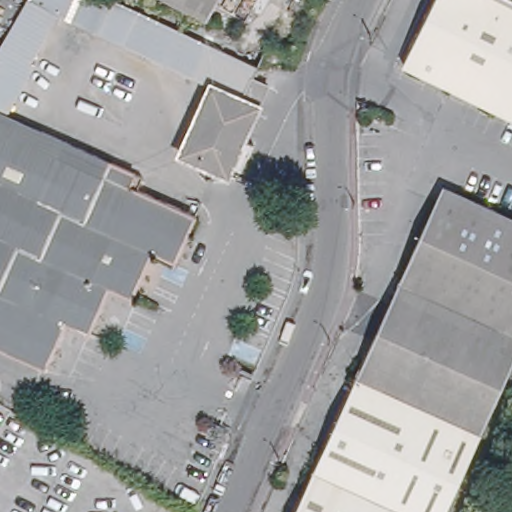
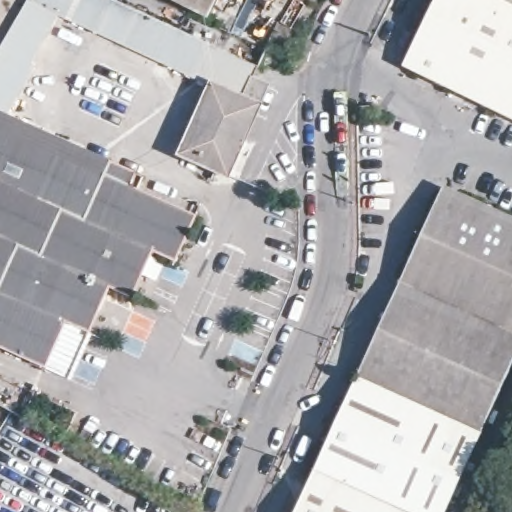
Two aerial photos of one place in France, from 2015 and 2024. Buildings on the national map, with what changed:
unchanged [(114,0),(257,67),(253,76),(269,83),(258,107),(209,86),(59,16),(34,63),(41,68),(17,119),(0,112),(0,45),(26,0),(114,0)]
unchanged [(166,0),(223,0),(211,23),(166,0)]
unchanged [(436,0),(512,0),(512,118),(404,66),(436,0)]
unchanged [(248,156),(238,151),(227,175),(179,154),(209,86),(258,107),(244,137),(255,142),(248,156)]
unchanged [(17,119),(135,172),(130,185),(196,215),(174,261),(152,251),(133,296),(109,286),(88,332),(67,322),(45,368),(0,348),(0,112),(17,119)]
unchanged [(449,512),(300,512),(448,186),(512,215),(512,372),(449,512)]

